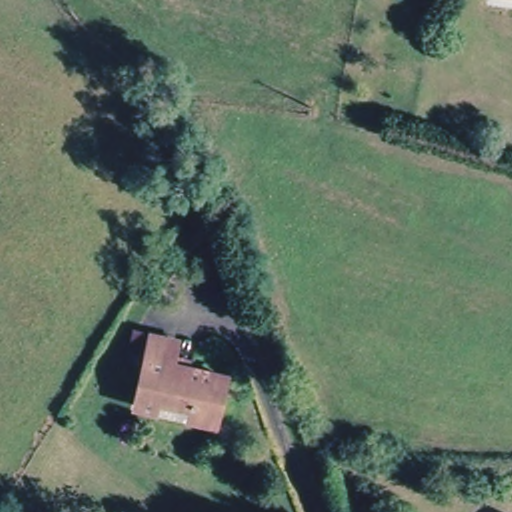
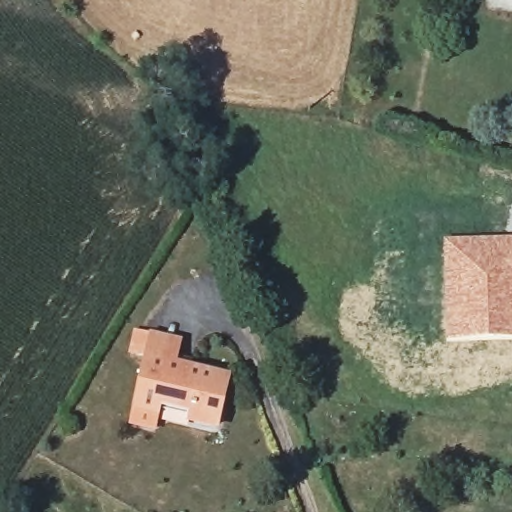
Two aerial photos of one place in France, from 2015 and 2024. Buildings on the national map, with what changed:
new [(512,238),(512,338),(484,340),(445,340),(442,240),(512,238)]
unchanged [(210,430),(181,422),(182,408),(157,401),(152,417),(127,410),(140,358),(146,335),(169,340),(167,354),(185,357),(182,369),(222,378),(210,430)]

